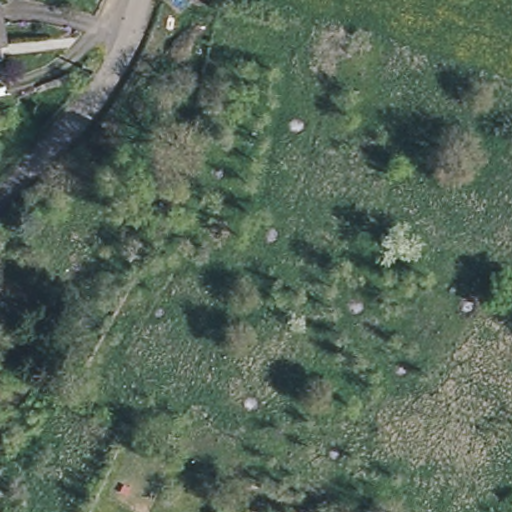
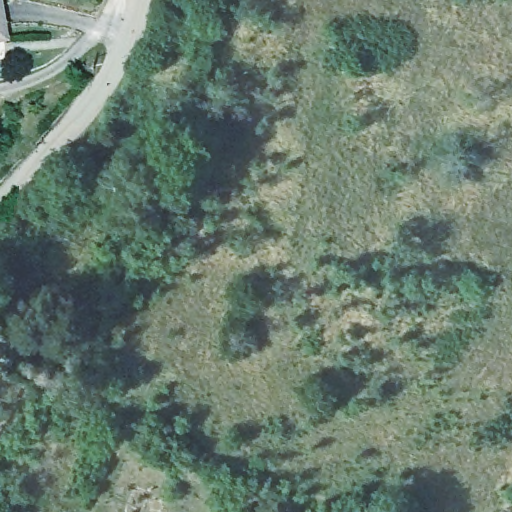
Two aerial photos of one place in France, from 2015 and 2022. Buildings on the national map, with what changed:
unchanged [(0,39),(0,20),(3,39),(0,39)]

